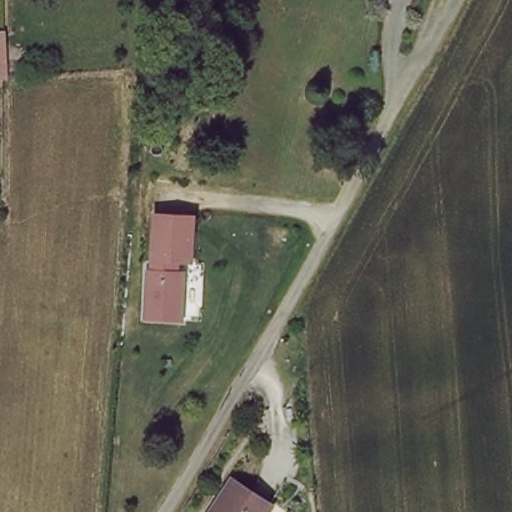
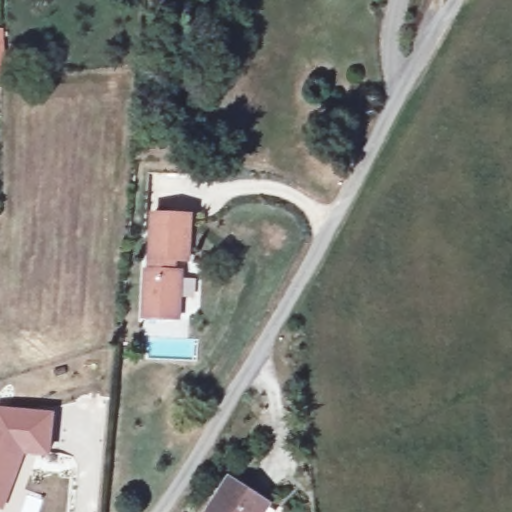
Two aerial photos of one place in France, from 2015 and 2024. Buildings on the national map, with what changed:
unchanged [(0,34),(1,34),(3,64),(1,79),(0,79),(0,34)]
unchanged [(192,218),(191,264),(180,264),(177,324),(142,321),(150,217),(192,218)]
new [(47,453),(20,450),(15,461),(17,462),(10,485),(0,482),(0,409),(52,416),(47,453)]
unchanged [(263,512),(213,512),(232,479),(268,502),(263,512)]

